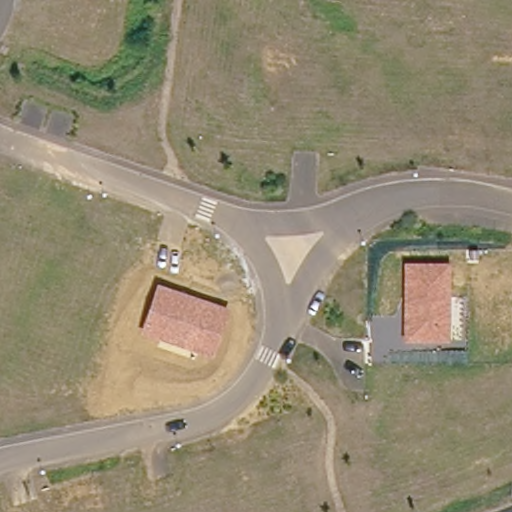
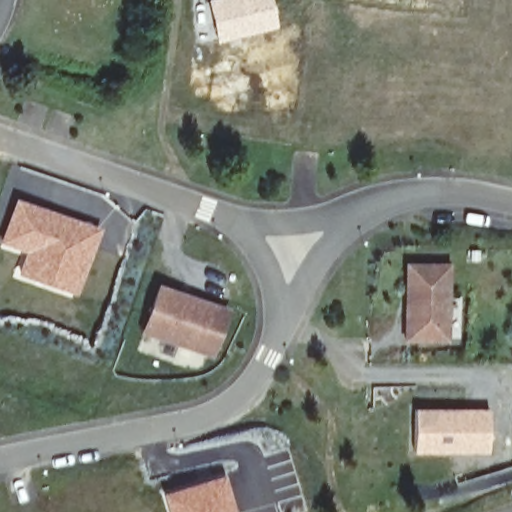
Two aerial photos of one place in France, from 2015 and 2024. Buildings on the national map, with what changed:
new [(277,27),(217,42),(206,0),(271,0),(277,27)]
new [(102,229),(79,297),(19,277),(26,253),(0,245),(14,199),(102,229)]
unchanged [(448,265),(448,342),(405,342),(404,263),(448,265)]
unchanged [(230,309),(214,357),(139,332),(157,283),(230,309)]
new [(490,409),(490,453),(414,454),(414,409),(490,409)]
new [(237,512),(168,512),(162,492),(226,473),(237,512)]
demolished [(374,512),(373,510),(383,506),(385,512),(374,512)]

